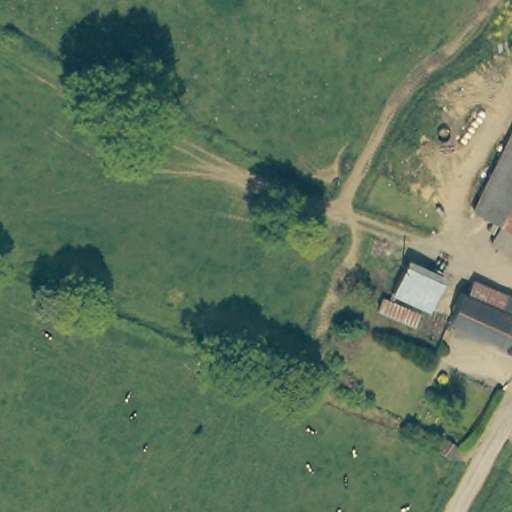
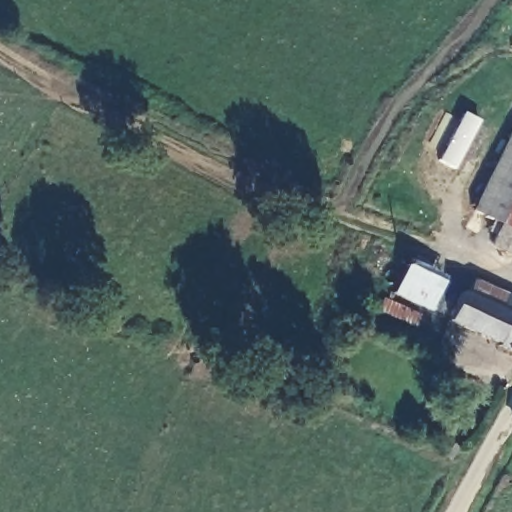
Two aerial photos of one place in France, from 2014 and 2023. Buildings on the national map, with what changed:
unchanged [(505,224),(477,211),(512,139),(512,210),(506,224),(505,224)]
unchanged [(512,210),(512,227),(506,224),(512,210)]
unchanged [(512,252),(496,244),(505,224),(506,224),(512,227),(512,252)]
unchanged [(393,295),(410,261),(446,278),(431,312),(393,295)]
unchanged [(462,292),(466,293),(474,278),(512,298),(512,353),(450,320),(462,292)]
unchanged [(375,314),(381,299),(421,316),(416,331),(375,314)]
unchanged [(439,453),(448,437),(461,443),(453,459),(439,453)]

